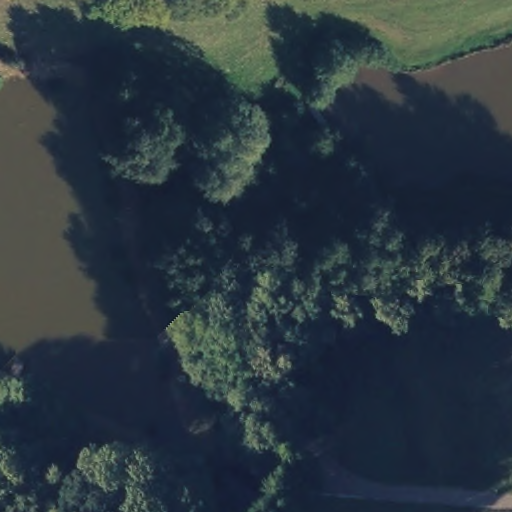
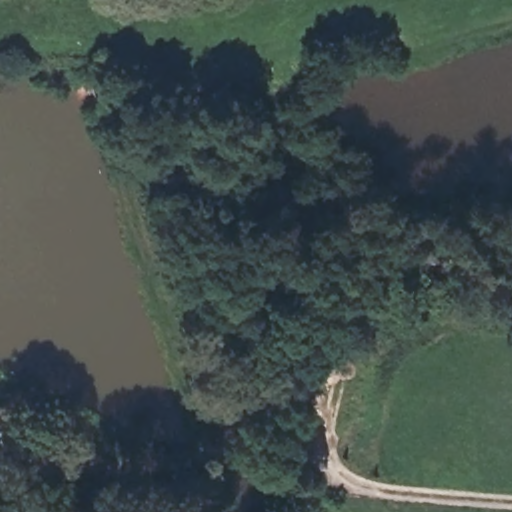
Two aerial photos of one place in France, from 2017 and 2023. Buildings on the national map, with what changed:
unchanged [(16,458),(0,453),(0,436),(1,430),(29,441),(26,457),(25,460),(16,458)]

